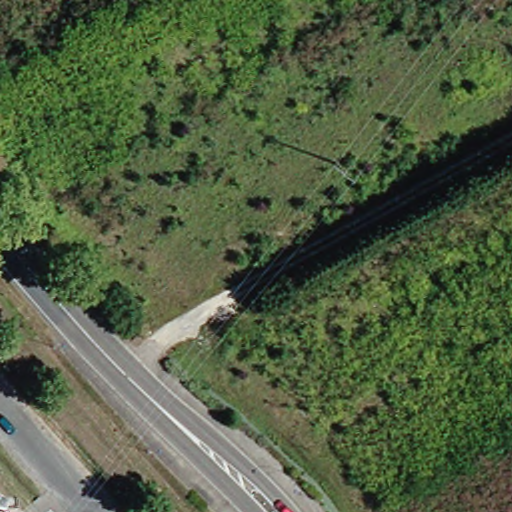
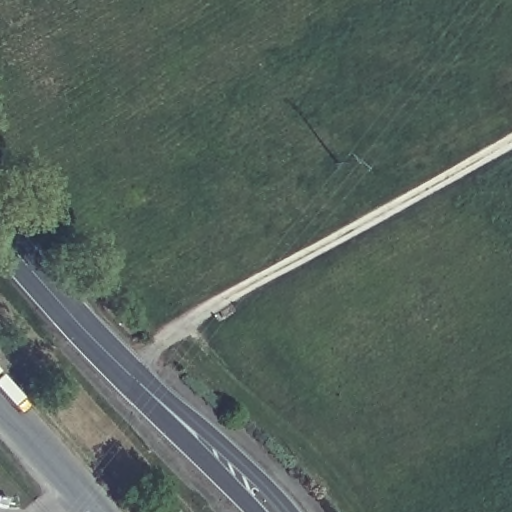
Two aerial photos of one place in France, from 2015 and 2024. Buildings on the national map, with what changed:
unchanged [(0,506),(0,495),(8,498),(5,508),(0,506)]

